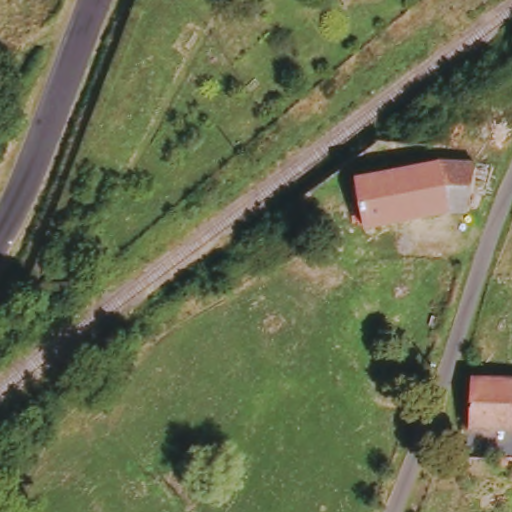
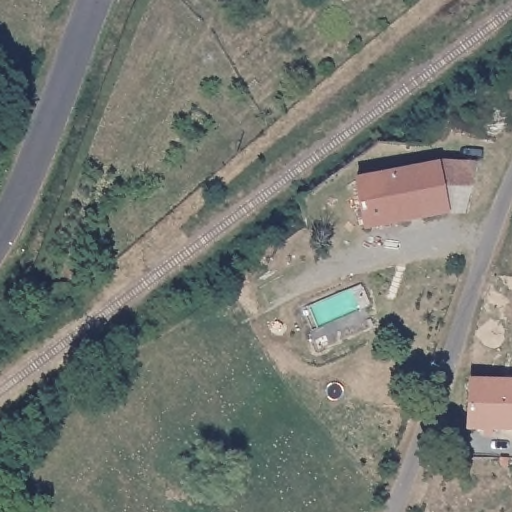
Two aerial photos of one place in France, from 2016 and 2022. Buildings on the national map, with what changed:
unchanged [(435,206),(355,228),(343,182),(428,159),(435,206)]
unchanged [(460,160),(457,207),(435,206),(428,159),(460,160)]
unchanged [(458,387),(512,386),(512,431),(460,432),(458,387)]

